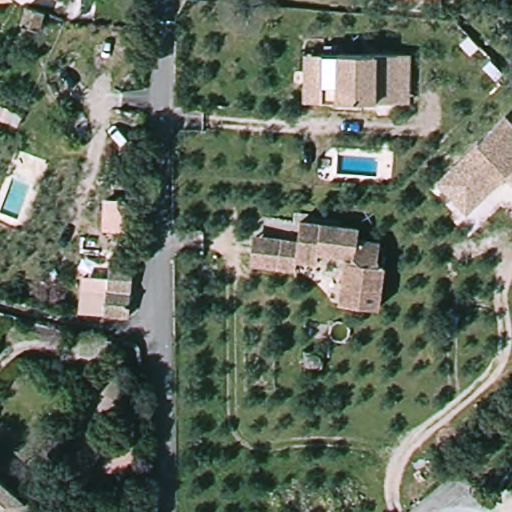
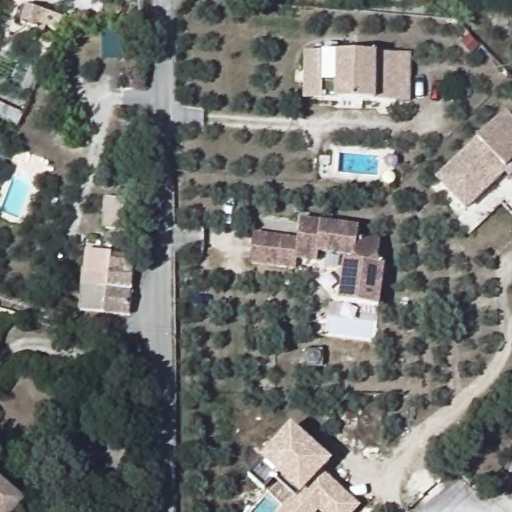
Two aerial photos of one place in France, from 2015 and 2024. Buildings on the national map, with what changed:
unchanged [(437,0),(437,1),(426,0),(437,0)]
unchanged [(20,26),(25,8),(42,15),(36,32),(20,26)]
unchanged [(303,103),(304,56),(332,58),(331,104),(303,103)]
unchanged [(331,104),(332,58),(410,60),(410,106),(331,104)]
unchanged [(20,118),(15,129),(0,122),(0,110),(20,118)]
unchanged [(512,126),(512,181),(478,214),(445,183),(509,123),(512,126)]
unchanged [(376,265),(381,265),(382,302),(347,298),(349,252),(320,249),(319,261),(298,259),(298,271),(282,271),(256,268),(257,237),(283,239),(300,242),(301,223),(352,226),(351,235),(378,238),(376,265)]
unchanged [(110,288),(111,288),(113,262),(119,263),(119,258),(125,258),(125,263),(136,264),(133,291),(131,316),(107,313),(110,288)]
new [(296,498),(277,479),(266,491),(251,477),(264,463),(260,460),(293,424),(334,461),(324,473),(362,508),(357,512),(281,512),(296,498)]
unchanged [(32,502),(23,512),(0,512),(0,475),(32,502)]

